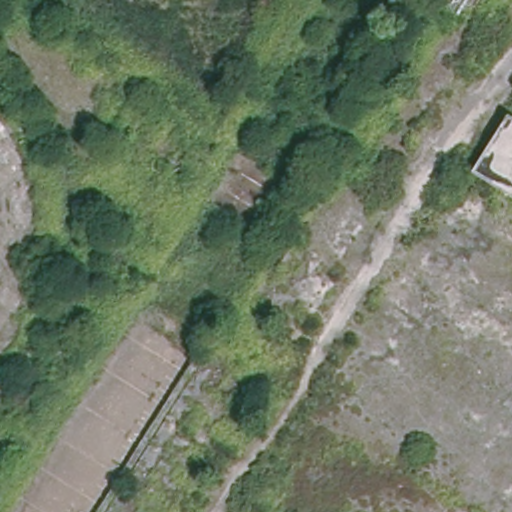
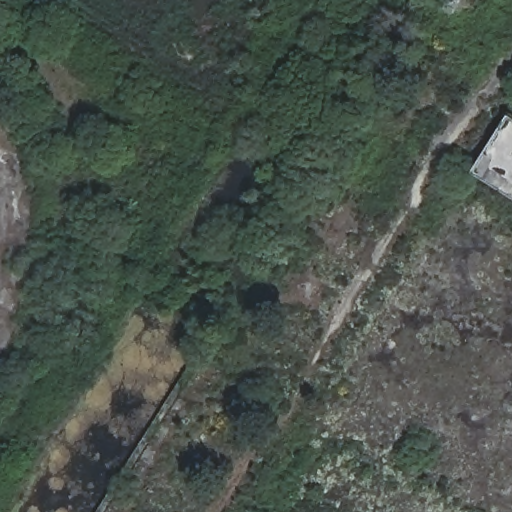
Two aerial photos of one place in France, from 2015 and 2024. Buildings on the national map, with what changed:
unchanged [(511,117),(512,118),(512,192),(478,170),(511,117)]

